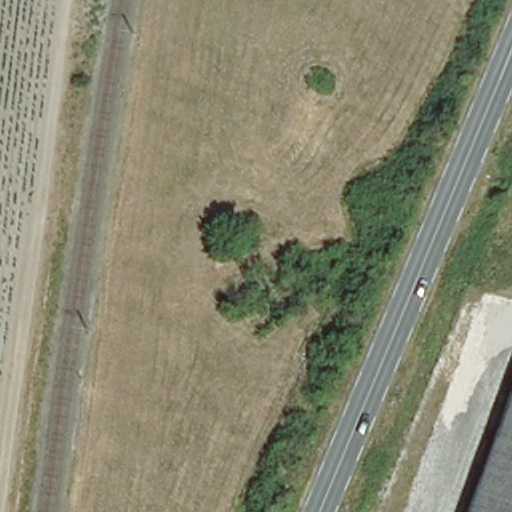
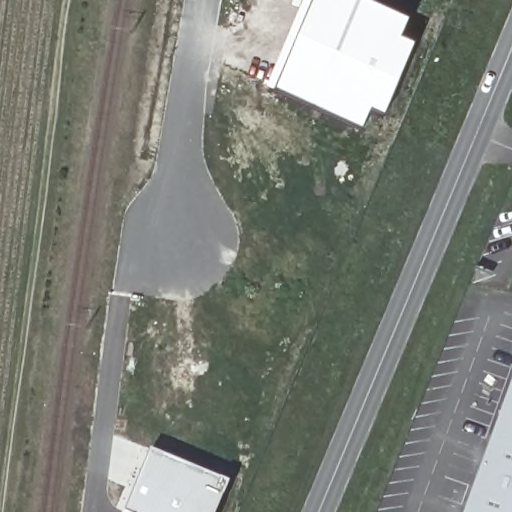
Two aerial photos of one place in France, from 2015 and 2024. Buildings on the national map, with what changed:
new [(383,0),(410,13),(402,31),(416,38),(384,115),(371,109),(362,126),(275,87),(313,0),(383,0)]
unchanged [(512,377),(512,512),(462,512),(512,377)]
new [(153,449),(233,481),(219,512),(124,512),(153,449)]

